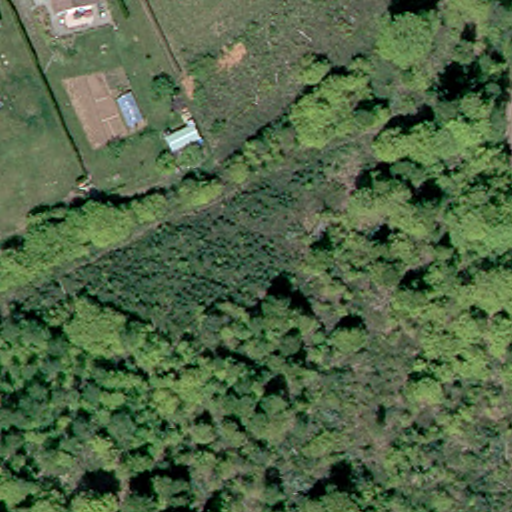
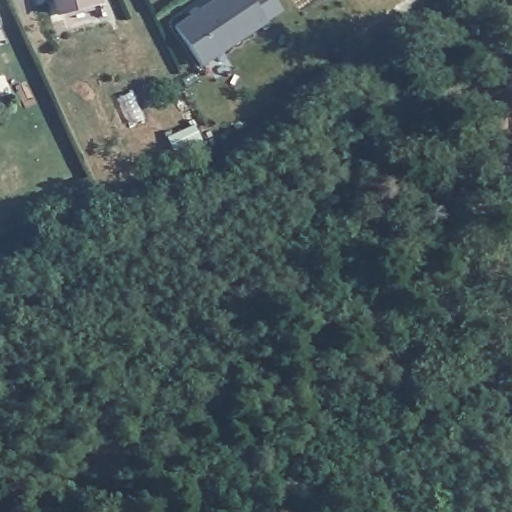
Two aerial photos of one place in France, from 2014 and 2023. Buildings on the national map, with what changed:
unchanged [(57,8),(55,0),(87,0),(57,8)]
new [(266,22),(201,65),(173,24),(209,0),(251,0),(266,22)]

